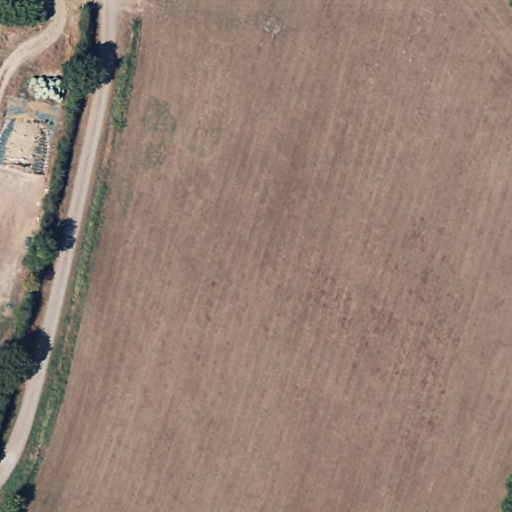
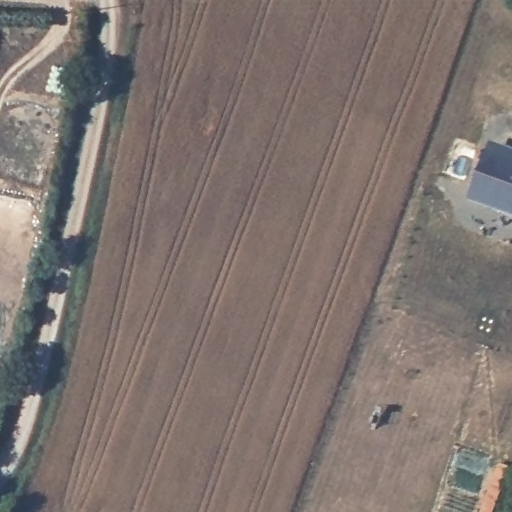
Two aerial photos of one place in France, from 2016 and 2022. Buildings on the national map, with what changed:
new [(490,140),(512,148),(512,215),(469,199),(490,140)]

